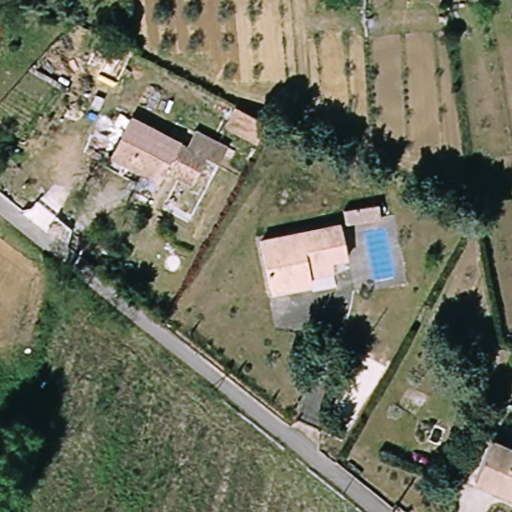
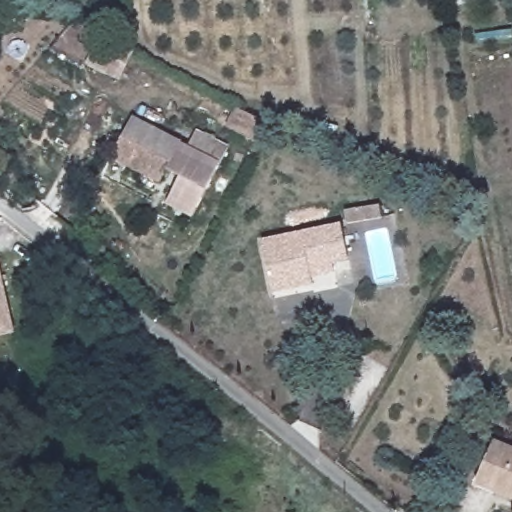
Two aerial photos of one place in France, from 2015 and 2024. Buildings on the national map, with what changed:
unchanged [(0,17),(3,17),(0,38),(0,17)]
unchanged [(261,144),(230,131),(238,109),(269,124),(261,144)]
unchanged [(169,175),(163,185),(115,160),(136,122),(210,160),(196,188),(169,175)]
unchanged [(196,130),(229,146),(221,165),(210,160),(186,147),(196,130)]
unchanged [(381,220),(346,226),(343,212),(379,205),(381,220)]
unchanged [(312,276),(312,285),(271,293),(264,242),(344,227),(348,259),(333,263),(334,273),(312,276)]
new [(0,337),(0,278),(14,333),(0,337)]
unchanged [(480,487),(496,447),(512,453),(512,499),(480,487)]

